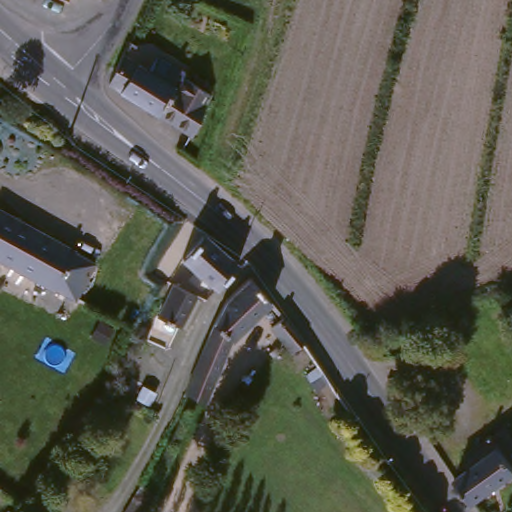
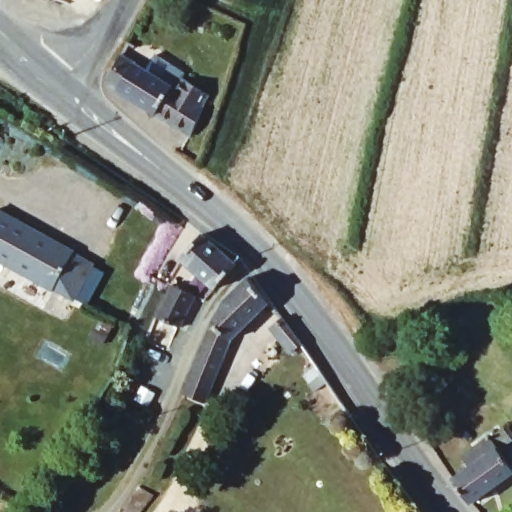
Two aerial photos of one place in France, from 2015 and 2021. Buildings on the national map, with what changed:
unchanged [(128,49),(181,83),(189,73),(216,90),(209,101),(211,101),(196,131),(113,78),(128,49)]
unchanged [(51,291),(51,292),(0,263),(0,215),(71,254),(71,255),(91,266),(71,302),(51,291)]
unchanged [(218,284),(184,253),(206,228),(213,231),(241,260),(218,284)]
unchanged [(234,330),(205,398),(183,388),(224,295),(248,273),(269,298),(234,330)]
unchanged [(194,289),(201,292),(186,324),(161,315),(176,280),(194,289)]
unchanged [(290,354),(268,329),(281,318),(302,343),(290,354)]
unchanged [(471,499),(454,474),(466,466),(463,461),(468,457),(464,451),(491,431),(492,433),(504,424),(512,435),(512,469),(471,499)]
unchanged [(140,484),(156,496),(144,512),(124,512),(140,484)]

